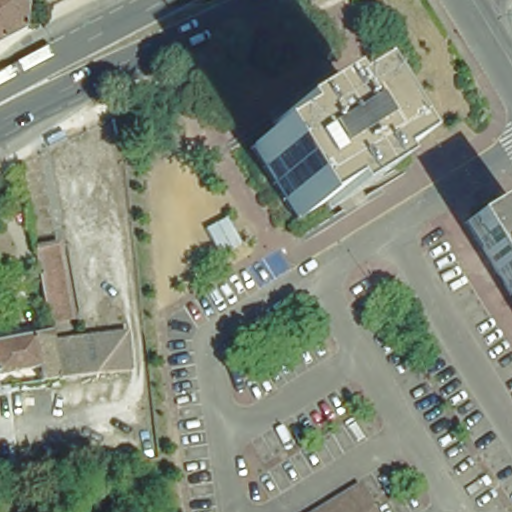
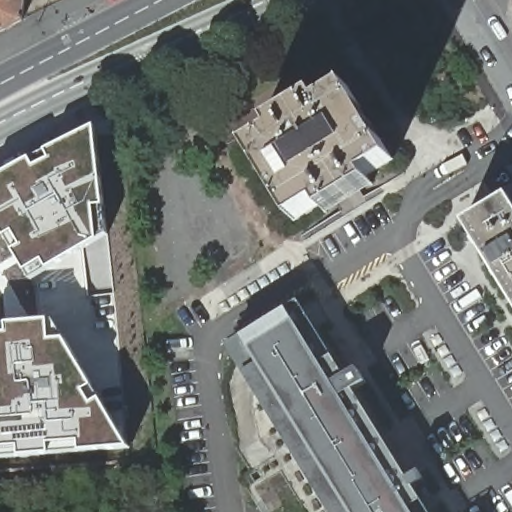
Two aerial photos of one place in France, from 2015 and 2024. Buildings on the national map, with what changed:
unchanged [(23,25),(22,25),(0,37),(0,0),(26,0),(23,25)]
unchanged [(275,131),(271,124),(317,95),(322,102),(347,87),(393,161),(367,176),(371,185),(360,191),(337,205),(325,212),(320,205),(294,221),(249,149),(275,131)]
new [(97,240),(47,270),(30,279),(24,271),(0,229),(0,176),(96,125),(105,209),(107,235),(97,240)]
unchanged [(512,201),(512,297),(469,227),(512,201)]
demolished [(75,313),(53,317),(40,244),(61,240),(73,301),(75,313)]
new [(328,512),(223,345),(298,300),(431,512),(328,512)]
new [(22,456),(0,458),(0,325),(7,324),(51,320),(66,341),(129,446),(22,456)]
demolished [(62,375),(62,374),(51,375),(47,376),(44,361),(0,370),(0,336),(55,325),(55,329),(57,338),(63,375),(62,375)]
demolished [(88,372),(63,375),(57,338),(88,334),(96,333),(107,332),(127,330),(132,366),(88,372)]
new [(223,345),(328,512),(261,512),(244,485),(223,345)]
demolished [(2,382),(0,383),(0,370),(2,382)]
demolished [(380,512),(303,512),(359,480),(380,512)]

